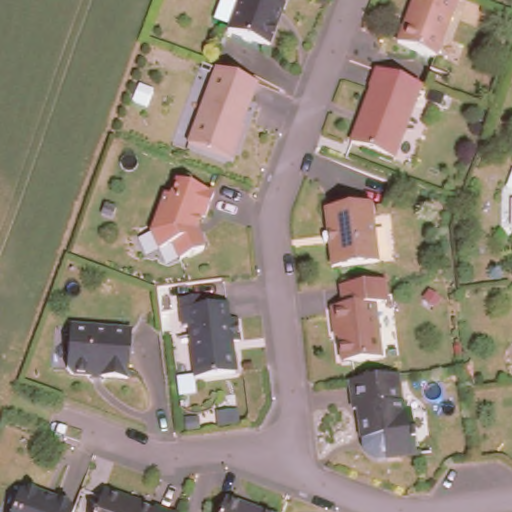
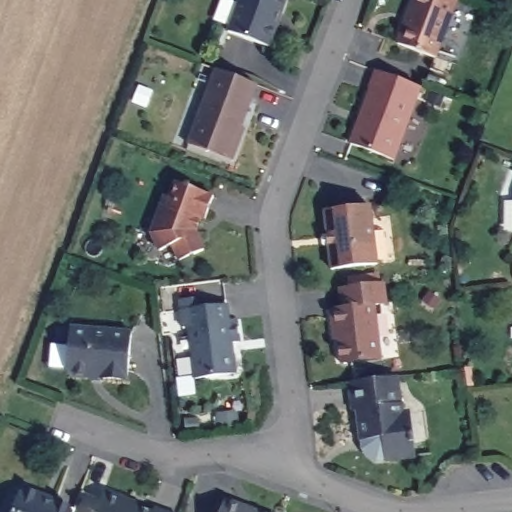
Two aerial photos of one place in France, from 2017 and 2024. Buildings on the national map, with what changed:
unchanged [(264,42),(222,27),(232,0),(280,0),(276,10),(272,19),(264,42)]
unchanged [(430,54),(392,40),(407,0),(450,0),(430,54)]
unchanged [(370,85),(367,84),(374,65),(420,82),(392,155),(349,139),(357,118),(360,109),(370,85)]
unchanged [(237,134),(228,157),(185,142),(211,70),(252,85),(237,124),(240,125),(237,134)]
unchanged [(204,214),(199,212),(193,229),(195,230),(197,234),(202,247),(178,257),(171,241),(158,247),(150,229),(164,191),(170,194),(176,178),(212,192),(204,214)]
unchanged [(320,212),(365,206),(372,263),(327,269),(323,245),(322,236),(320,212)]
unchanged [(327,323),(325,305),(337,303),(335,283),(378,278),(380,299),(369,301),(375,354),(335,358),(332,334),(328,335),(327,323)]
unchanged [(229,370),(188,375),(182,322),(177,323),(175,306),(173,296),(193,293),(195,303),(221,300),(223,316),(230,316),(233,337),(225,338),(227,347),(229,370)]
unchanged [(132,333),(127,380),(71,375),(70,371),(74,328),(132,333)]
unchanged [(363,444),(362,437),(360,437),(357,406),(352,407),(348,378),(392,372),(395,387),(400,387),(402,408),(407,407),(410,429),(413,428),(416,450),(385,453),(385,452),(377,452),(363,444)]
unchanged [(125,495),(138,500),(137,502),(152,508),(154,503),(177,512),(93,512),(103,486),(125,495)]
unchanged [(10,506),(12,498),(18,496),(18,494),(25,491),(37,495),(40,502),(52,506),(58,503),(70,507),(72,512),(12,512),(10,506)]
unchanged [(239,503),(253,508),(264,512),(213,512),(220,496),(239,503)]

